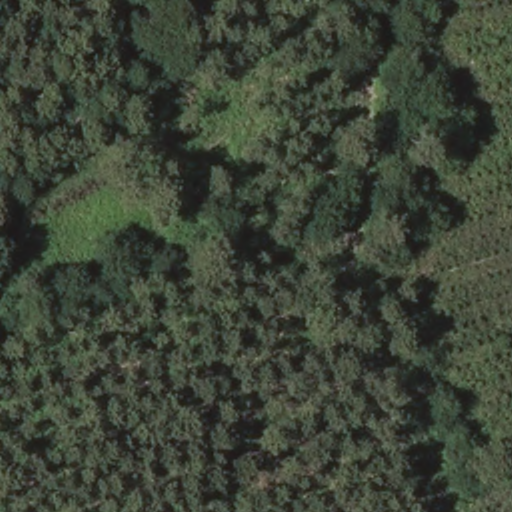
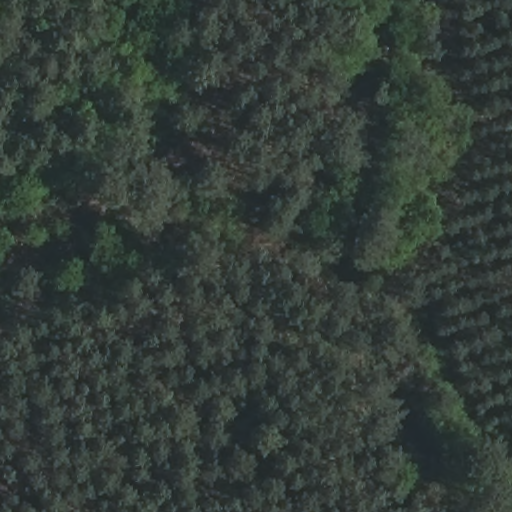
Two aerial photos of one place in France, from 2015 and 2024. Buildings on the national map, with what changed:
[]

